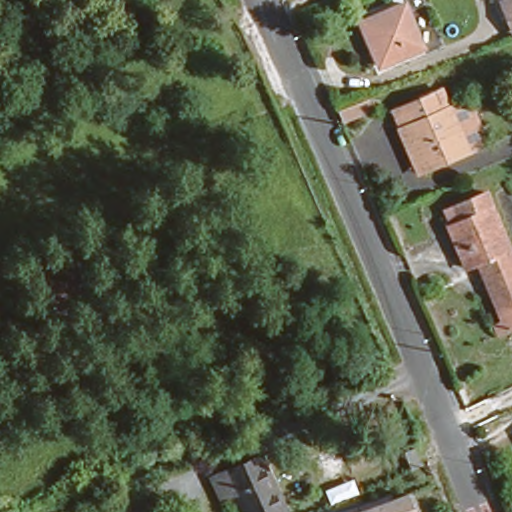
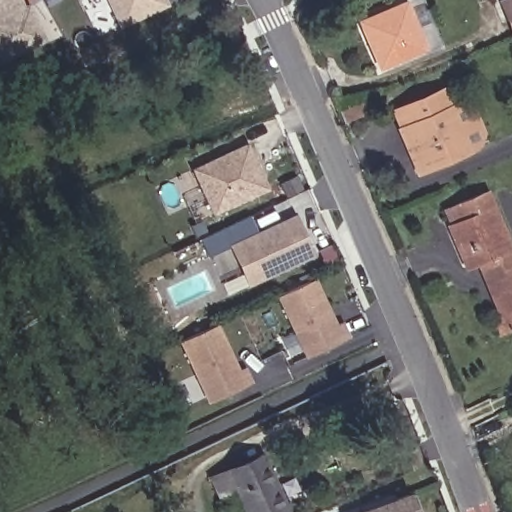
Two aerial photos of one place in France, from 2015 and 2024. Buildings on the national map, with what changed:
new [(24,5),(29,3),(45,41),(0,61),(0,0),(21,0),(24,5)]
new [(167,5),(117,27),(105,0),(165,0),(167,5)]
unchanged [(424,42),(420,44),(382,59),(362,17),(401,0),(407,0),(424,42)]
unchanged [(512,16),(511,15),(505,0),(512,0),(512,16)]
new [(443,86),(452,107),(472,98),(490,141),(417,175),(395,128),(398,127),(391,110),(443,86)]
demolished [(406,116),(444,100),(450,97),(471,146),(464,148),(427,163),(406,116)]
new [(247,142),(259,162),(268,189),(212,216),(190,168),(247,142)]
unchanged [(512,248),(512,264),(511,264),(482,274),(475,259),(468,262),(448,217),(455,213),(450,201),(480,189),(487,186),(512,248)]
new [(295,214),(315,256),(247,286),(228,244),(295,214)]
unchanged [(486,322),(498,317),(482,274),(511,264),(512,264),(512,326),(492,334),(486,322)]
new [(315,277),(335,323),(342,320),(347,335),(304,357),(275,296),(315,277)]
new [(216,324),(236,368),(244,365),(251,382),(207,403),(177,341),(216,324)]
unchanged [(240,478),(224,486),(215,470),(260,449),(271,473),(284,498),(257,512),(256,512),(244,486),(240,478)]
unchanged [(418,512),(352,512),(410,491),(418,512)]

